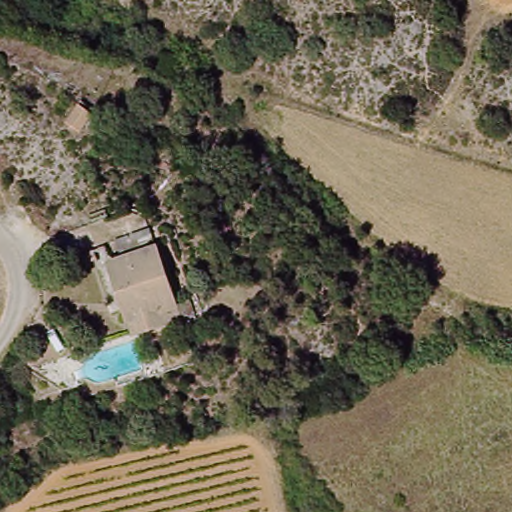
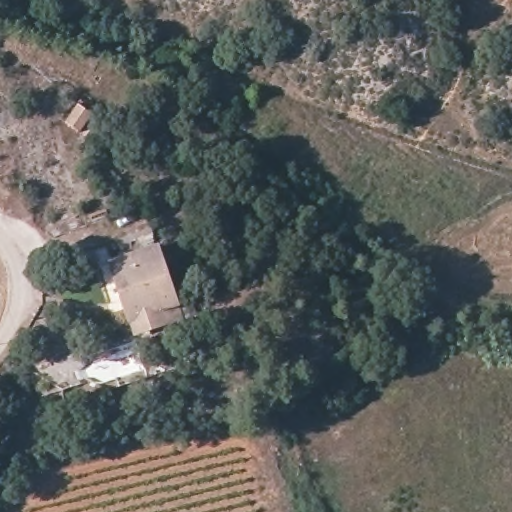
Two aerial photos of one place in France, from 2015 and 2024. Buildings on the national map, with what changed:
unchanged [(93,118),(73,140),(58,126),(78,102),(93,118)]
unchanged [(181,306),(168,311),(172,324),(149,333),(144,320),(137,322),(117,265),(159,249),(181,306)]

